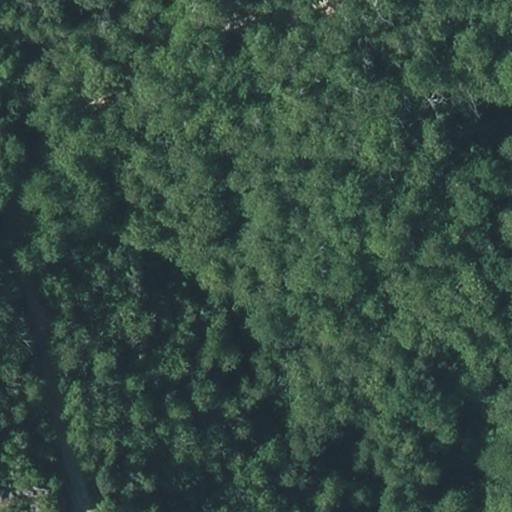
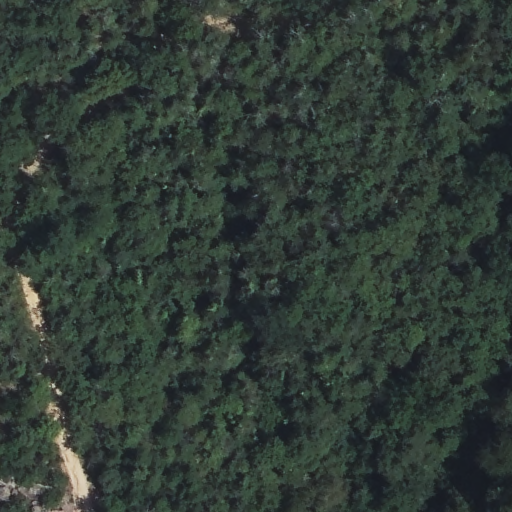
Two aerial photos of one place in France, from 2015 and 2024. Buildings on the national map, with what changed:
[]

